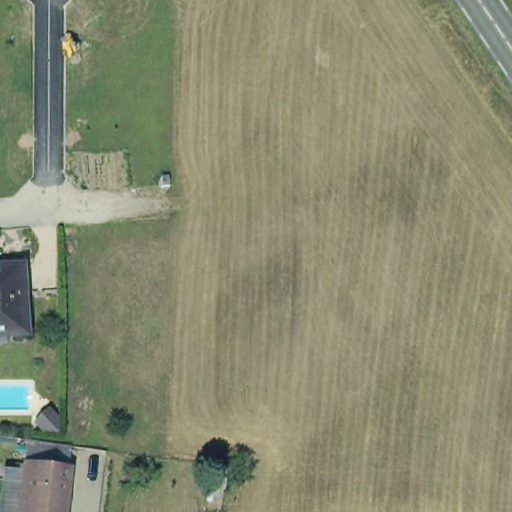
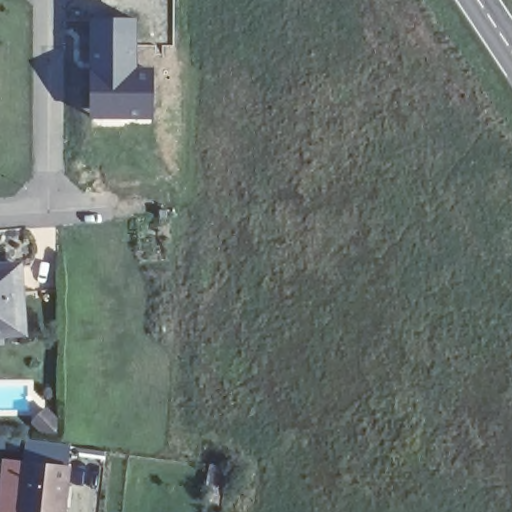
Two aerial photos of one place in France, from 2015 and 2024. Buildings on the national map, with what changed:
new [(138,18),(138,74),(152,75),(152,122),(90,122),(89,18),(138,18)]
unchanged [(15,326),(0,326),(0,259),(13,258),(15,326)]
unchanged [(64,512),(0,512),(0,462),(67,462),(64,512)]

